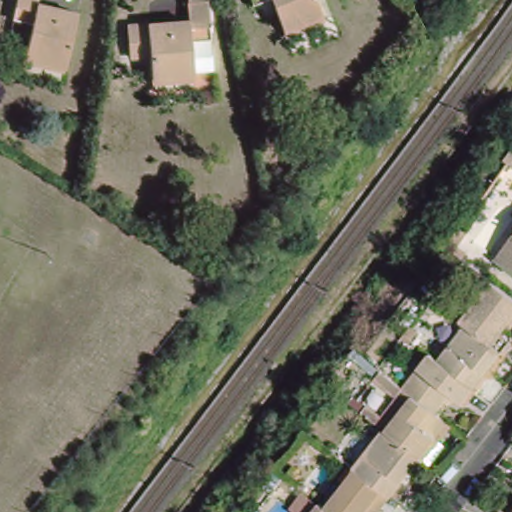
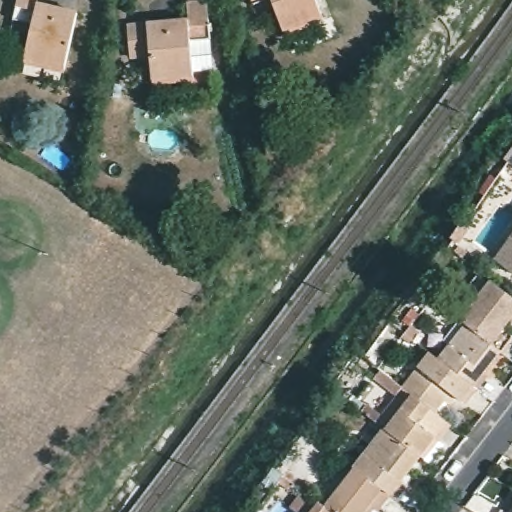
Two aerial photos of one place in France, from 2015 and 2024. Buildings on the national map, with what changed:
unchanged [(23,0),(44,0),(43,4),(63,11),(81,17),(78,24),(63,68),(26,56),(33,32),(13,25),(17,17),(23,0)]
unchanged [(192,81),(152,82),(151,57),(130,57),(128,18),(189,16),(189,1),(203,0),(210,0),(211,49),(212,59),(192,60),(192,81)]
unchanged [(249,0),(312,0),(317,21),(278,30),(272,8),(252,12),(249,1),(249,0)]
unchanged [(457,241),(452,239),(462,226),(465,228),(457,241)]
unchanged [(512,236),(512,263),(499,253),(512,236)]
unchanged [(458,324),(489,284),(512,302),(512,318),(502,330),(512,338),(499,354),(462,326),(458,324)]
unchanged [(499,354),(500,355),(472,389),(436,361),(462,326),(499,354)]
unchanged [(405,339),(408,334),(412,328),(420,334),(415,339),(412,344),(405,339)]
unchanged [(441,402),(432,413),(410,395),(402,390),(430,356),(436,361),(472,389),(461,404),(452,397),(445,406),(441,402)]
unchanged [(432,413),(445,423),(418,458),(382,431),(410,395),(432,413)]
unchanged [(353,470),(352,469),(382,430),(382,431),(418,458),(388,497),(353,470)]
unchanged [(324,508),(353,470),(388,497),(377,512),(376,512),(372,509),(371,512),(328,512),(324,508)]
unchanged [(317,503),(324,508),(328,512),(311,512),(317,503)]
unchanged [(512,505),(512,512),(510,512),(508,511),(512,505)]

